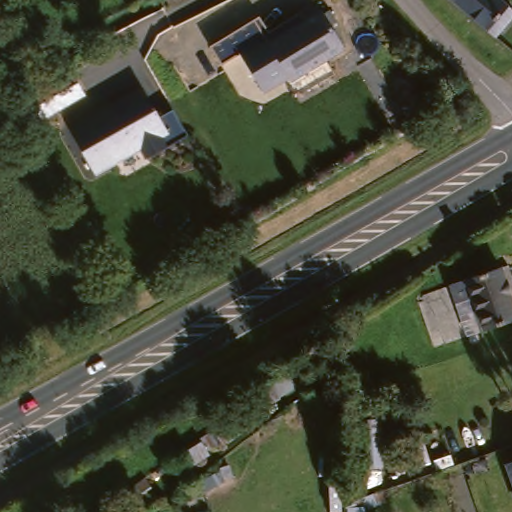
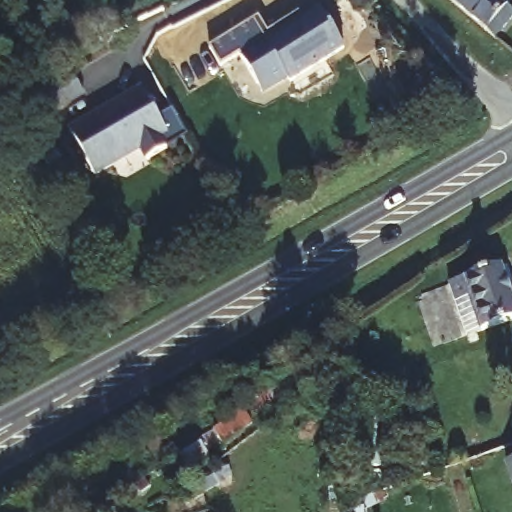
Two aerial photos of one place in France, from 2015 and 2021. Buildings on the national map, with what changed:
unchanged [(509,12),(494,32),(498,36),(492,41),(448,0),(495,0),(509,12)]
unchanged [(314,14),(339,56),(273,94),(249,52),(314,14)]
unchanged [(74,65),(86,88),(57,104),(44,111),(31,89),(45,82),(74,65)]
unchanged [(142,146),(114,161),(115,162),(96,173),(71,128),(94,116),(95,118),(117,106),(115,104),(145,88),(161,117),(175,110),(190,136),(169,147),(148,159),(142,146)]
unchanged [(512,298),(512,326),(485,335),(481,323),(465,328),(455,292),(503,274),(512,298)]
unchanged [(376,426),(378,470),(351,471),(347,428),(376,426)]
unchanged [(512,465),(512,505),(500,469),(512,465)]

